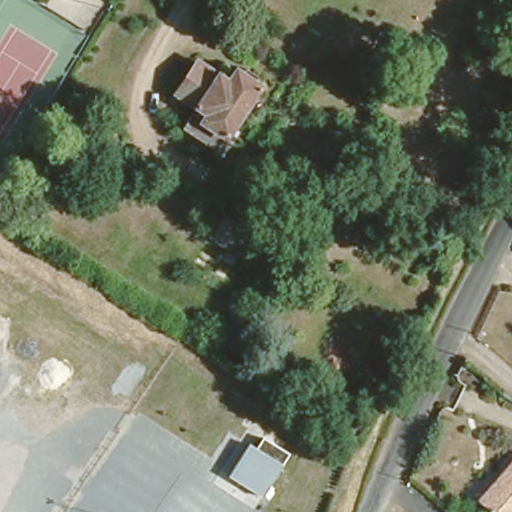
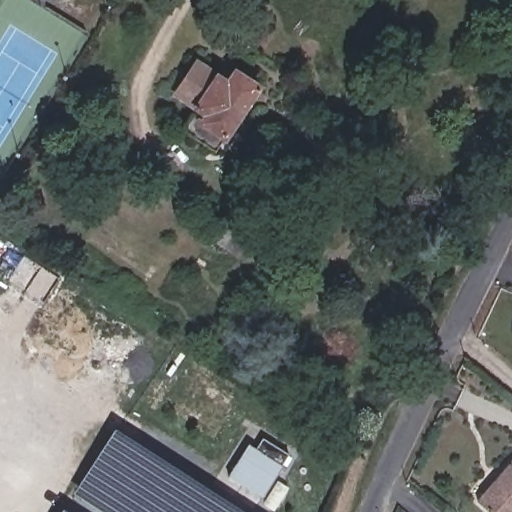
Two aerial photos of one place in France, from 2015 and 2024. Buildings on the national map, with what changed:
unchanged [(178,127),(189,111),(194,114),(199,106),(174,88),(193,58),(225,79),(233,66),(238,70),(246,67),(249,67),(252,70),(254,73),(255,80),(258,83),(214,150),(178,127)]
new [(247,512),(105,512),(74,491),(117,428),(247,512)]
unchanged [(281,467),(279,466),(262,497),(228,478),(251,443),(258,447),(265,437),(289,452),(281,467)]
unchanged [(495,472),(500,477),(504,472),(500,469),(512,455),(512,512),(498,512),(477,494),(495,472)]
new [(73,512),(61,512),(65,506),(73,512)]

